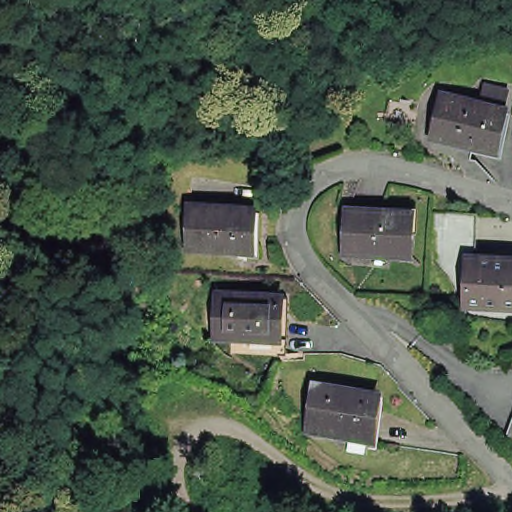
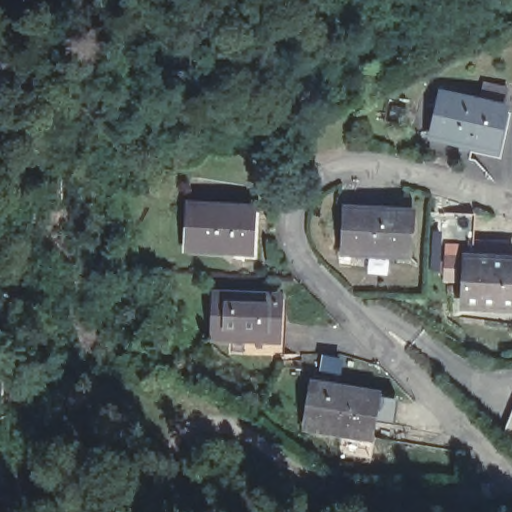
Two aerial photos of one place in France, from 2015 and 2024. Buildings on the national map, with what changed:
unchanged [(432,145),(435,132),(444,92),(504,104),(495,144),(467,138),(465,151),(432,145)]
unchanged [(246,214),(245,254),(182,250),(184,210),(246,214)]
unchanged [(408,214),(406,254),(344,251),(346,211),(408,214)]
unchanged [(471,258),(512,260),(512,308),(464,305),(466,258),(442,257),(445,212),(475,214),(471,258)]
unchanged [(225,346),(226,330),(210,329),(211,288),(275,292),(272,332),(271,349),(225,346)]
unchanged [(369,390),(361,430),(301,420),(308,380),(369,390)]
unchanged [(512,405),(512,435),(502,431),(512,405)]

